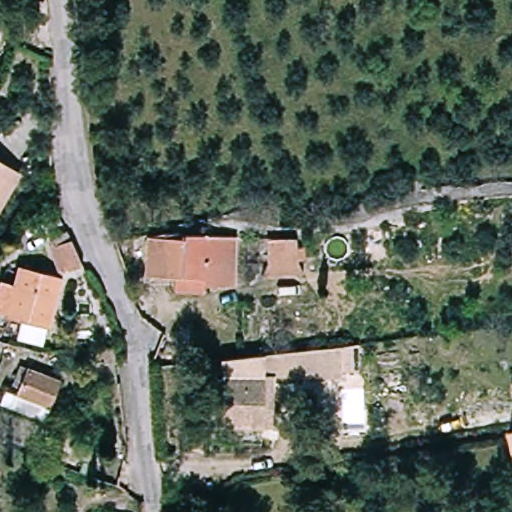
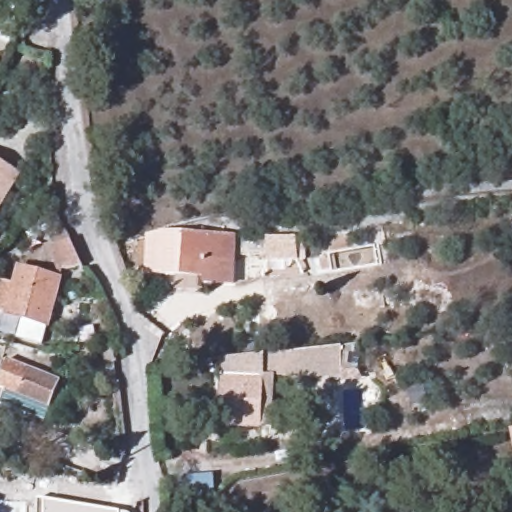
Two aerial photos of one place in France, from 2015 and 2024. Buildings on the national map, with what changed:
unchanged [(0,206),(0,173),(13,179),(0,206)]
unchanged [(62,228),(74,251),(55,262),(42,236),(62,227),(62,228)]
unchanged [(236,244),(234,290),(203,289),(204,298),(172,297),(173,282),(145,280),(147,239),(236,244)]
unchanged [(265,242),(265,244),(295,241),(298,267),(304,279),(261,281),(266,267),(266,258),(242,260),(241,242),(265,242)]
unchanged [(16,284),(21,266),(66,278),(53,329),(49,328),(45,346),(19,338),(25,321),(0,313),(0,294),(4,282),(16,284)]
unchanged [(231,366),(275,358),(290,356),(336,351),(337,385),(260,381),(257,435),(224,432),(227,367),(231,366)]
unchanged [(20,367),(54,380),(38,421),(0,406),(0,390),(10,393),(20,367)]
unchanged [(512,434),(512,471),(505,435),(512,434)]
new [(121,512),(39,512),(39,500),(121,512)]

